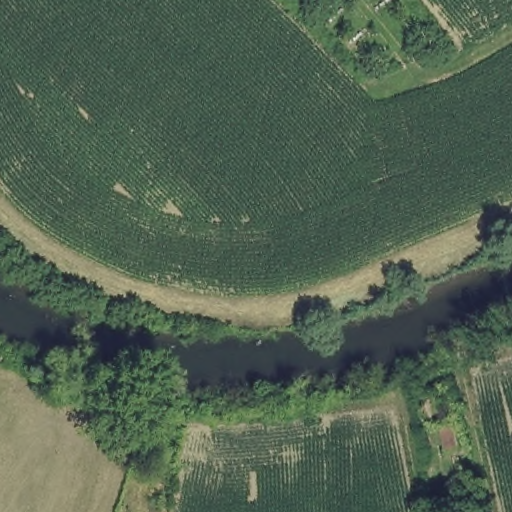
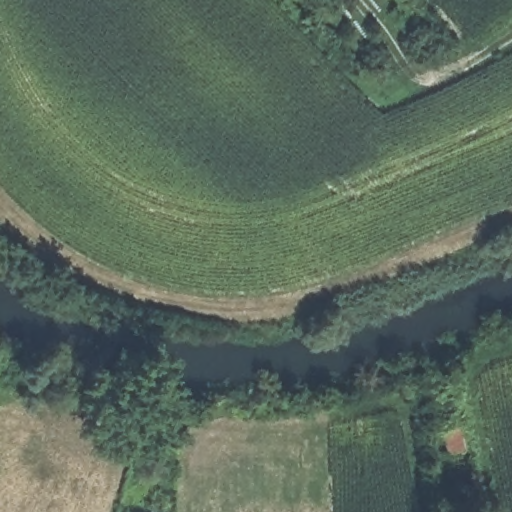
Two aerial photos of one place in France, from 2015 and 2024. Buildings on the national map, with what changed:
unchanged [(460,448),(442,451),(437,423),(456,421),(460,448)]

